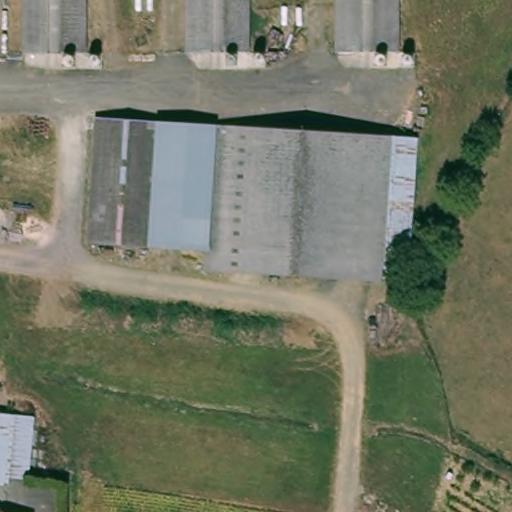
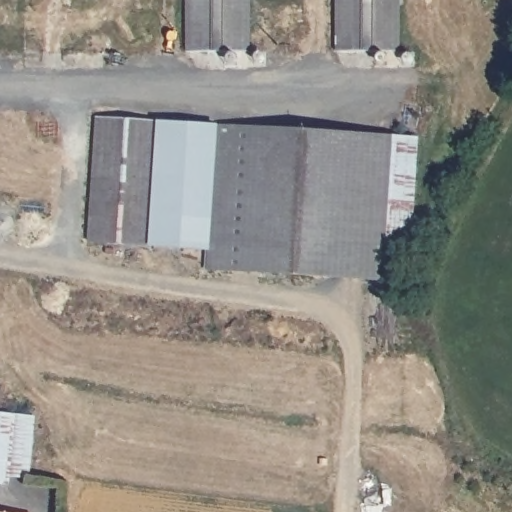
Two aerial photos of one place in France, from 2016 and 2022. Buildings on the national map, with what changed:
demolished [(84,49),(25,51),(25,0),(84,0),(84,49)]
unchanged [(188,0),(246,0),(246,49),(187,48),(188,0)]
unchanged [(398,47),(338,47),(338,0),(399,0),(398,47)]
unchanged [(99,116),(216,123),(208,249),(92,240),(99,116)]
unchanged [(237,126),(412,137),(401,275),(228,263),(237,126)]
unchanged [(12,480),(0,479),(0,410),(17,411),(12,480)]

